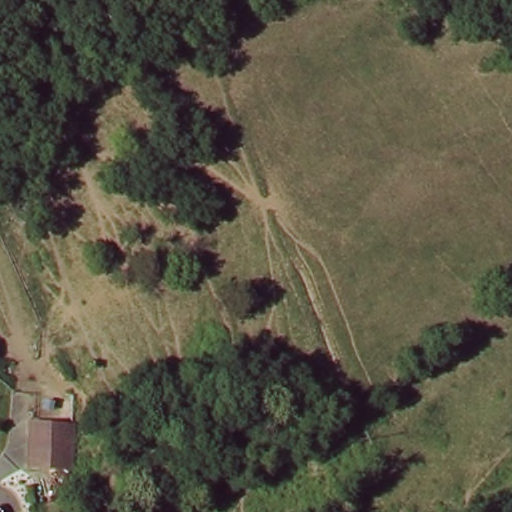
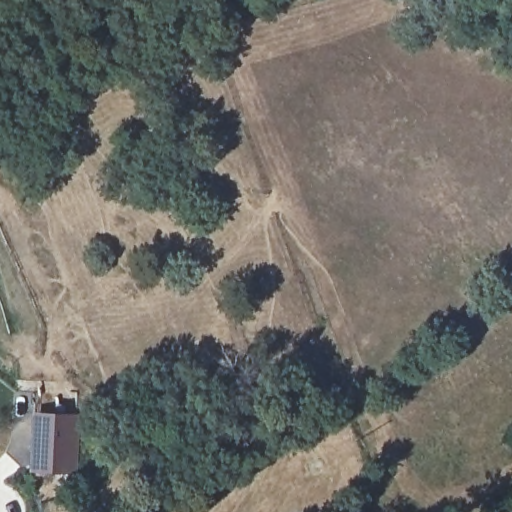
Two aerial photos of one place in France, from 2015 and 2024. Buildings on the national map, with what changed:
unchanged [(35,445),(34,426),(64,425),(64,444),(35,445)]

